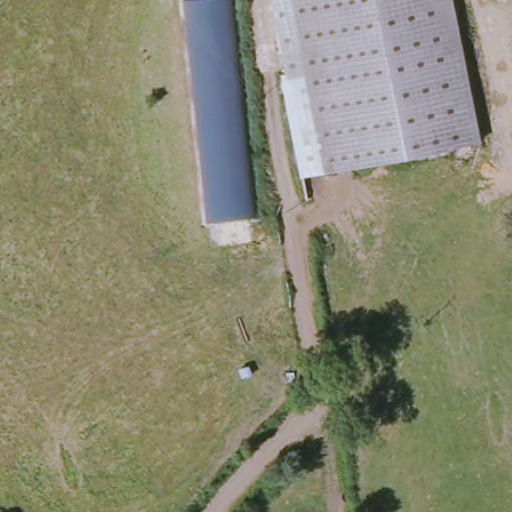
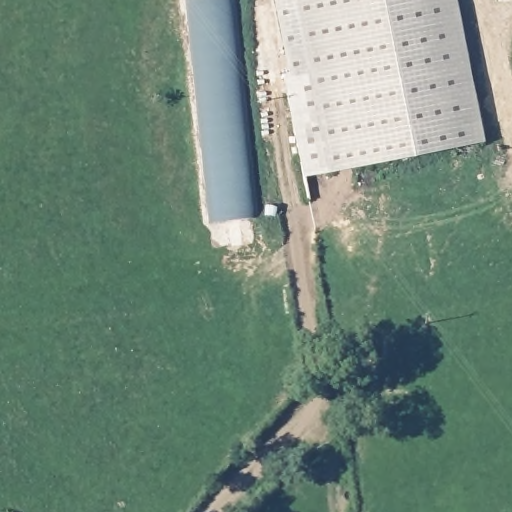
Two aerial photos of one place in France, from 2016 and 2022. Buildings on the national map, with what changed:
unchanged [(209,222),(186,0),(234,0),(257,216),(209,222)]
unchanged [(326,170),(306,72),(291,75),(275,0),(453,0),(481,139),(326,170)]

